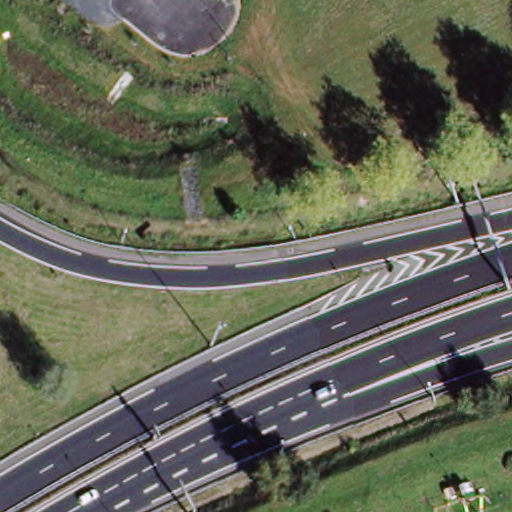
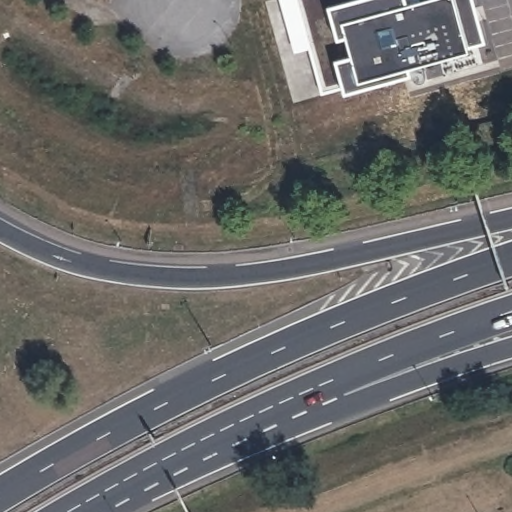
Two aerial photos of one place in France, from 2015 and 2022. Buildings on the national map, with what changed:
new [(408,77),(410,80),(343,99),(341,92),(317,98),(304,50),(289,54),(274,0),(469,0),(482,47),(419,65),(421,73),(408,77)]

